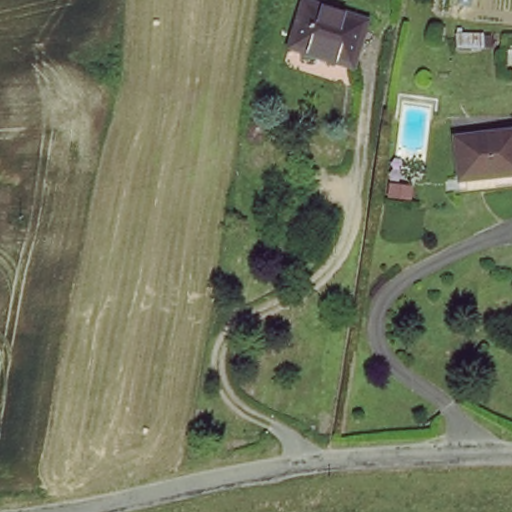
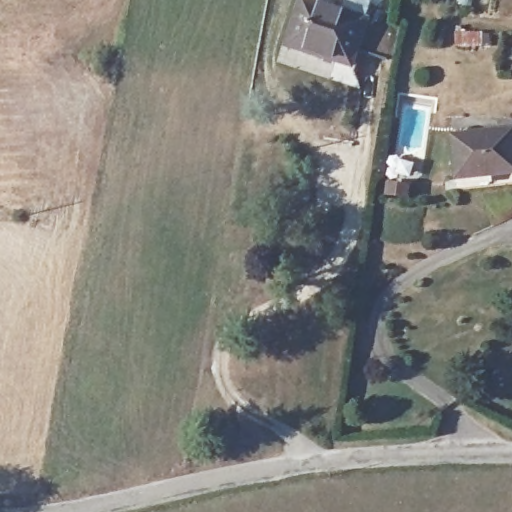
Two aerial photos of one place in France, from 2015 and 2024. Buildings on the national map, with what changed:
unchanged [(364,18),(356,63),(291,49),(299,5),(364,18)]
unchanged [(512,129),(512,170),(455,178),(449,137),(512,129)]

